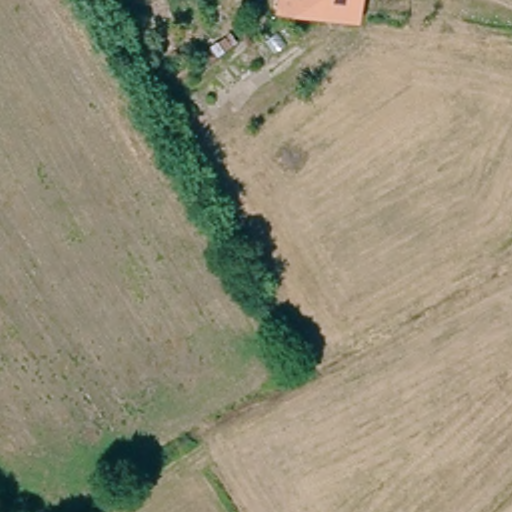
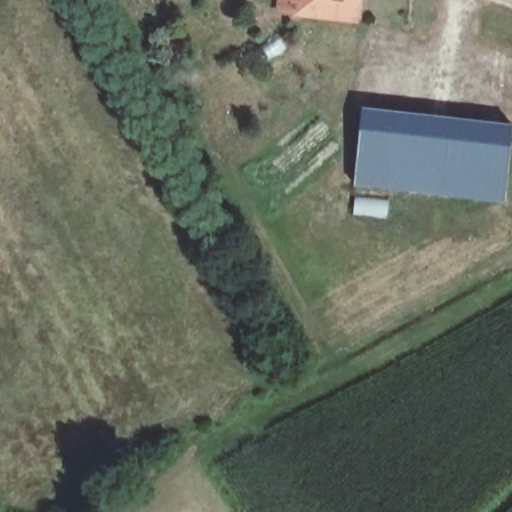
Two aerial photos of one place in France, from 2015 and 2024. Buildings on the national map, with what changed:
unchanged [(274,7),(275,0),(352,0),(351,16),(274,7)]
new [(512,125),(512,143),(506,202),(354,185),(363,109),(512,125)]

